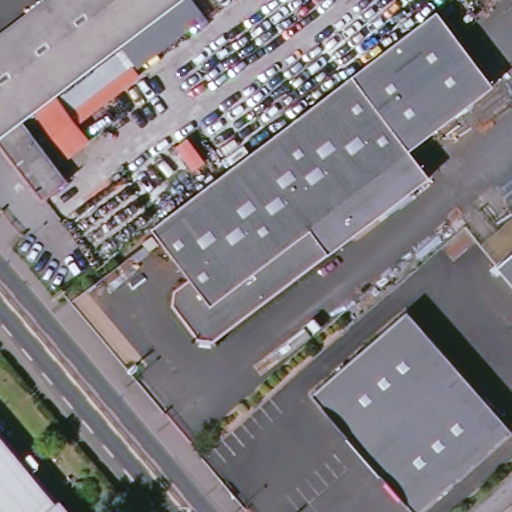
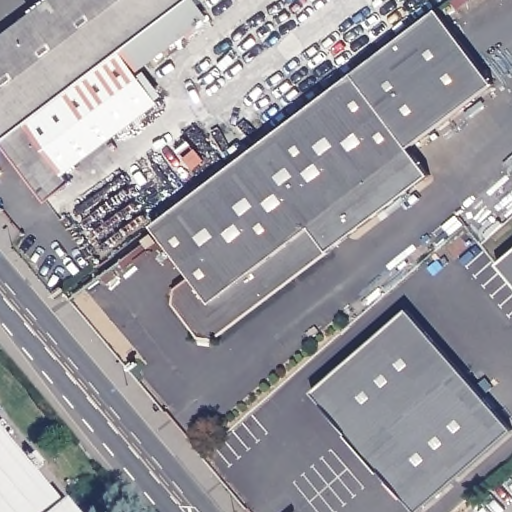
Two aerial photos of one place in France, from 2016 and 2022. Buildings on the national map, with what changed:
unchanged [(0,139),(0,37),(48,0),(182,0),(21,123),(0,139)]
unchanged [(422,16),(432,10),(488,84),(404,148),(424,175),(208,338),(194,336),(167,302),(169,288),(185,276),(147,225),(422,16)]
unchanged [(67,183),(41,203),(0,150),(0,139),(21,123),(67,183)]
unchanged [(512,251),(512,280),(497,263),(512,251)]
unchanged [(512,430),(418,512),(415,512),(311,392),(406,309),(512,430)]
unchanged [(67,503),(74,512),(0,512),(0,432),(62,506),(67,503)]

